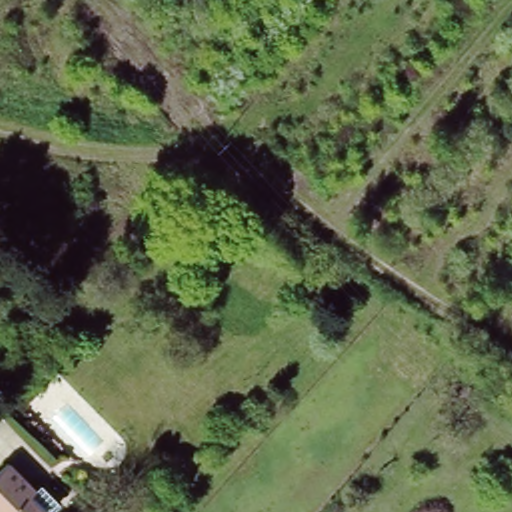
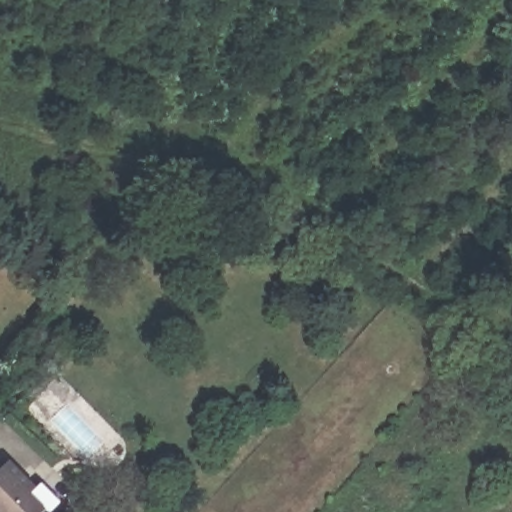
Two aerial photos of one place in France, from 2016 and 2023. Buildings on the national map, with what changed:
unchanged [(27,495),(42,509),(40,512),(0,512),(0,468),(3,464),(32,489),(27,495)]

